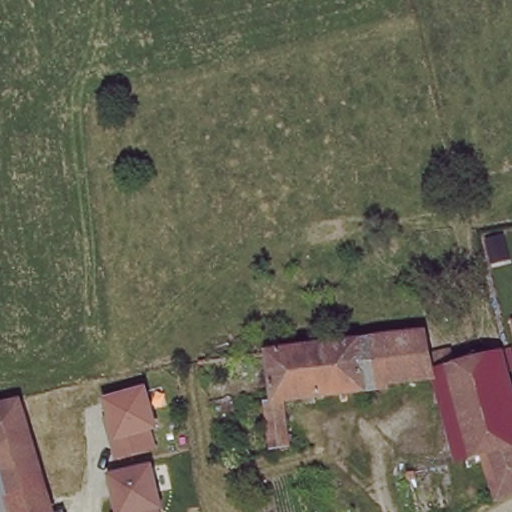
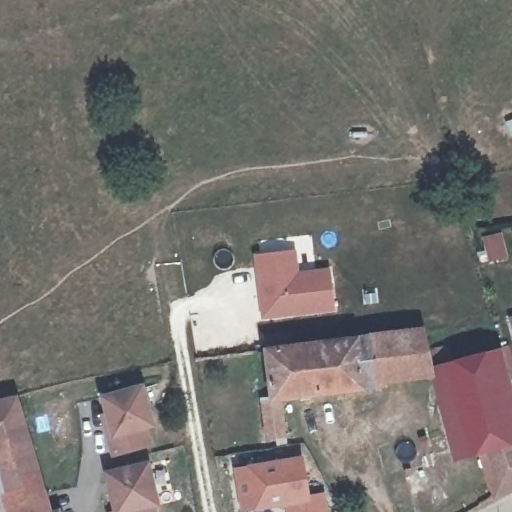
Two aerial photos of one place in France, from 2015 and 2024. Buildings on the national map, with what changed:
new [(254,255),(295,252),(299,274),(330,270),(334,311),(262,320),(254,255)]
unchanged [(511,316),(512,316),(512,322),(511,316)]
unchanged [(432,376),(381,382),(376,338),(396,336),(423,332),(428,355),(431,372),(432,376)]
unchanged [(382,386),(280,399),(285,438),(267,441),(262,401),(273,399),(267,353),(265,338),(270,337),(290,334),(292,349),(326,345),(376,338),(381,382),(382,386)]
unchanged [(512,408),(512,445),(481,454),(465,459),(441,370),(431,372),(428,355),(447,350),(452,367),(455,366),(498,355),(512,408)]
unchanged [(98,397),(137,388),(146,425),(138,427),(142,445),(106,454),(102,435),(97,416),(102,414),(98,397)]
unchanged [(49,506),(32,512),(0,512),(0,491),(5,490),(0,472),(0,398),(15,395),(49,506)]
unchanged [(512,445),(512,488),(496,497),(481,454),(512,445)]
new [(302,459),(309,497),(322,495),(324,512),(288,512),(287,502),(241,511),(236,473),(302,459)]
unchanged [(154,506),(115,512),(112,512),(103,471),(145,462),(154,506)]
new [(154,506),(155,512),(115,512),(154,506)]
unchanged [(57,512),(48,512),(56,509),(57,512)]

